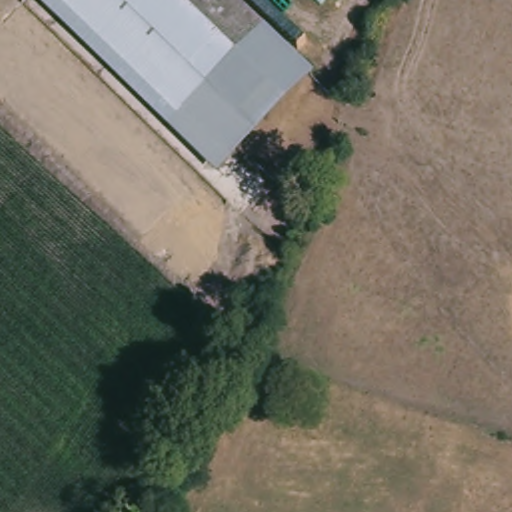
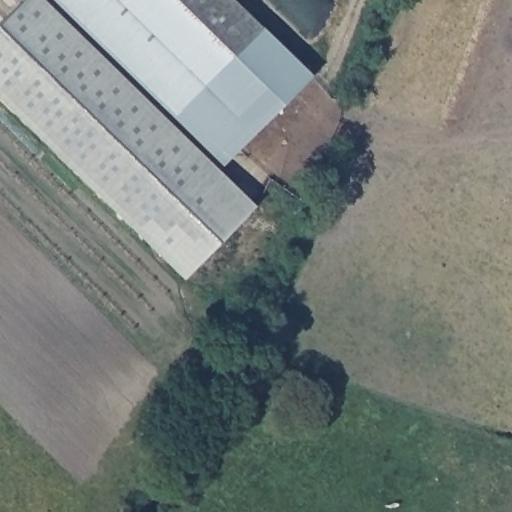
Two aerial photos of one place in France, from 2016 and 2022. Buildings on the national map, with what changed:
new [(255,206),(184,279),(0,99),(0,21),(21,0),(50,0),(216,170),(255,206)]
unchanged [(264,27),(200,91),(169,121),(50,0),(237,0),(264,27)]
unchanged [(264,27),(310,75),(216,170),(169,121),(264,27)]

